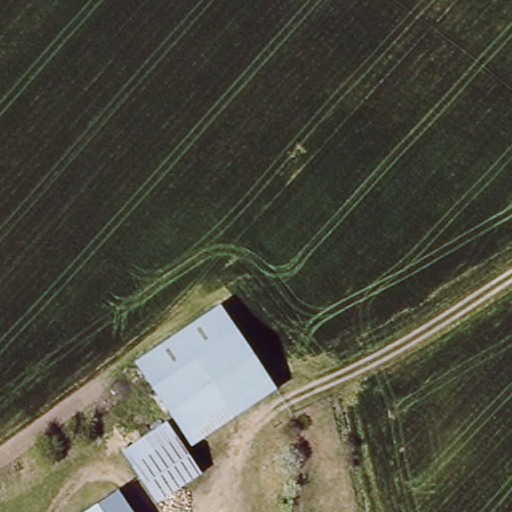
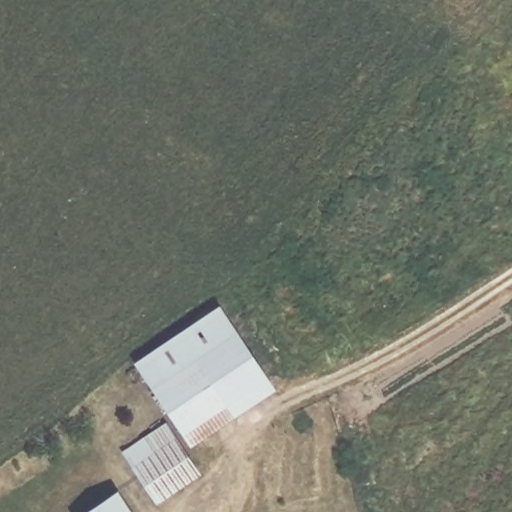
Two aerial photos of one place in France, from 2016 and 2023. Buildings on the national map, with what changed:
unchanged [(139,360),(219,309),(273,388),(188,442),(139,360)]
unchanged [(121,451),(166,422),(196,462),(148,491),(121,451)]
unchanged [(118,491),(131,512),(82,512),(118,491)]

